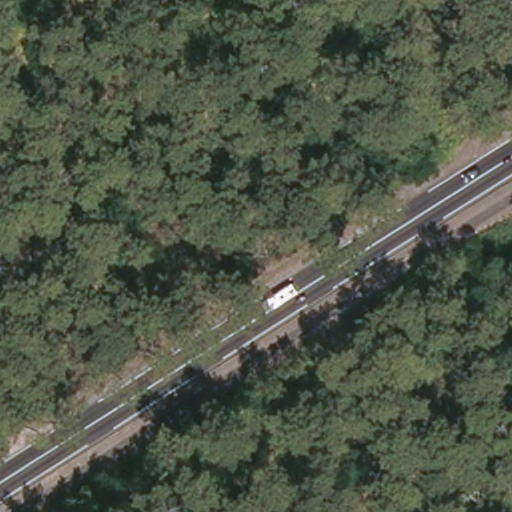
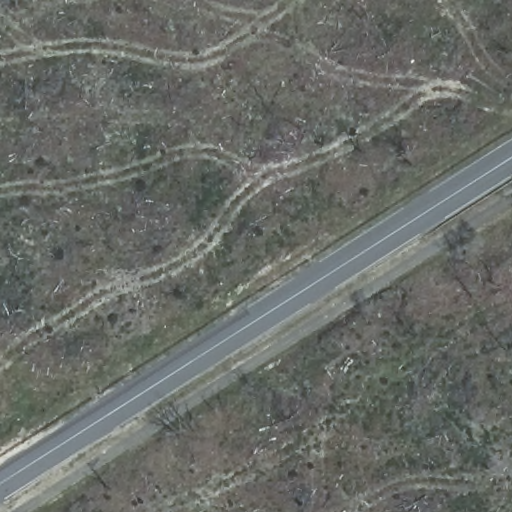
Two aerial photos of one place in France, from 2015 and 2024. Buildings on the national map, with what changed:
[]

